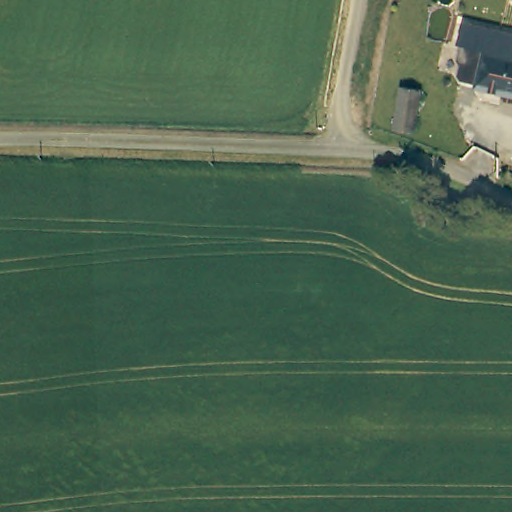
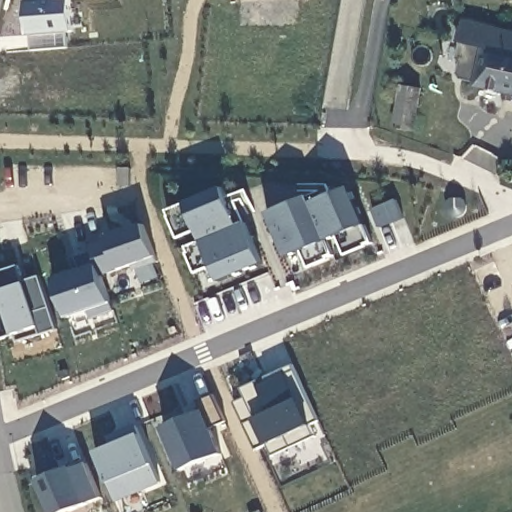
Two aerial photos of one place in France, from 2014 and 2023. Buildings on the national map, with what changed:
new [(29,33),(27,1),(32,0),(71,0),(73,29),(68,30),(69,46),(58,47),(32,49),(31,33),(57,31),(29,33)]
unchanged [(472,88),(481,51),(455,45),(459,20),(512,32),(512,97),(472,88)]
unchanged [(420,87),(413,129),(393,127),(400,84),(420,87)]
new [(240,226),(246,224),(263,265),(220,283),(212,267),(196,274),(188,255),(190,254),(187,248),(202,243),(197,231),(179,240),(168,212),(187,203),(223,187),(240,226)]
new [(304,197),(309,198),(312,204),(350,188),(364,225),(373,243),(366,246),(367,248),(345,256),(338,237),(327,241),(333,257),(327,259),(328,261),(309,269),(301,252),(286,258),(268,214),(304,197)]
new [(156,258),(100,275),(110,304),(86,312),(66,317),(53,280),(79,271),(75,257),(92,251),(90,246),(106,238),(143,225),(156,258)]
new [(39,277),(56,330),(17,343),(12,336),(2,305),(0,306),(0,272),(19,266),(23,282),(39,277)]
new [(245,399),(241,390),(293,366),(317,422),(308,426),(314,437),(272,457),(265,446),(255,450),(235,404),(245,399)]
new [(225,422),(211,427),(222,454),(180,473),(162,429),(204,411),(199,403),(213,396),(225,422)]
new [(95,453),(111,446),(109,437),(135,426),(138,434),(153,467),(160,485),(115,502),(95,453)]
new [(72,468),(72,470),(86,464),(100,499),(67,512),(49,512),(37,482),(72,468)]

